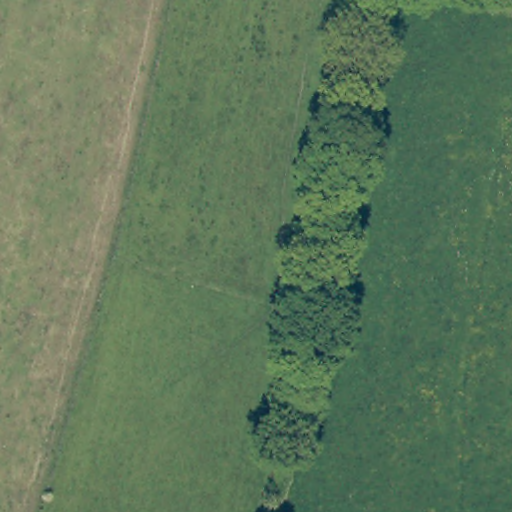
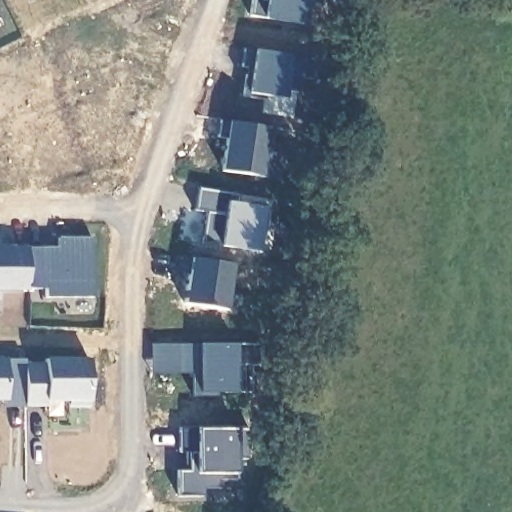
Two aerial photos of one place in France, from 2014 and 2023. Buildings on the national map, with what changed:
new [(301,23),(247,15),(250,0),(305,0),(301,23)]
unchanged [(512,4),(497,0),(512,0),(512,4)]
new [(315,58),(312,78),(299,76),(297,91),(284,89),(283,98),(264,94),(263,98),(241,95),(245,66),(240,65),(244,47),(315,58)]
new [(270,126),(262,176),(220,170),(226,137),(216,136),(220,119),(270,126)]
new [(236,202),(267,206),(262,234),(257,234),(255,250),(200,242),(204,211),(192,209),(196,186),(238,192),(236,202)]
new [(57,246),(57,236),(91,237),(91,296),(44,296),(44,287),(27,288),(27,246),(57,246)]
new [(27,288),(0,288),(0,247),(27,246),(27,288)]
new [(225,309),(182,302),(187,273),(181,272),(184,255),(232,263),(225,309)]
new [(180,363),(191,363),(191,372),(150,372),(149,342),(180,342),(180,363)]
new [(261,342),(261,364),(250,364),(250,391),(215,391),(215,395),(191,395),(191,372),(191,363),(180,363),(180,342),(261,342)]
new [(4,405),(4,399),(0,399),(0,358),(25,358),(25,364),(25,404),(25,405),(4,405)]
new [(25,364),(45,363),(45,358),(89,358),(89,405),(68,405),(68,398),(46,399),(46,403),(25,404),(25,364)]
new [(249,426),(248,447),(247,447),(247,457),(236,457),(236,479),(220,479),(220,487),(202,487),(202,494),(176,495),(176,468),(187,468),(187,451),(179,451),(179,426),(249,426)]

